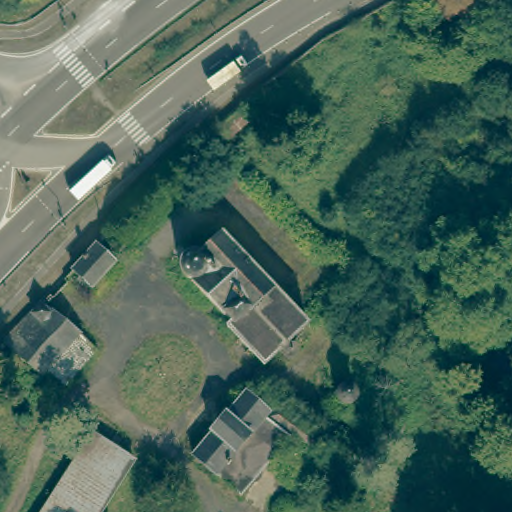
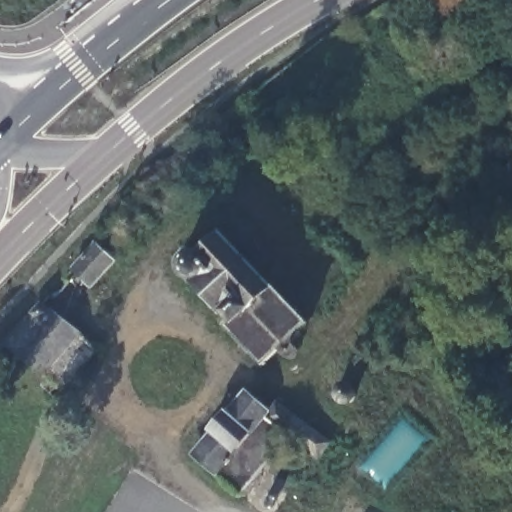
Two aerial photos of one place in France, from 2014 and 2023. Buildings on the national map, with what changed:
unchanged [(305,323),(262,363),(227,323),(230,317),(223,310),(221,312),(190,276),(191,272),(183,266),(182,260),(188,254),(199,252),(224,232),(305,323)]
unchanged [(114,263),(91,290),(73,275),(98,248),(114,263)]
unchanged [(41,304),(43,302),(52,308),(53,307),(96,349),(54,394),(40,381),(46,373),(9,341),(41,304)]
unchanged [(266,407),(275,396),(329,441),(317,457),(289,434),(239,493),(191,451),(209,431),(206,427),(222,408),(226,409),(244,389),(266,407)]
demolished [(135,459),(101,512),(41,512),(94,429),(135,459)]
unchanged [(294,449),(300,452),(303,457),(301,463),(296,465),(291,464),(287,461),(286,456),(288,451),(294,449)]

